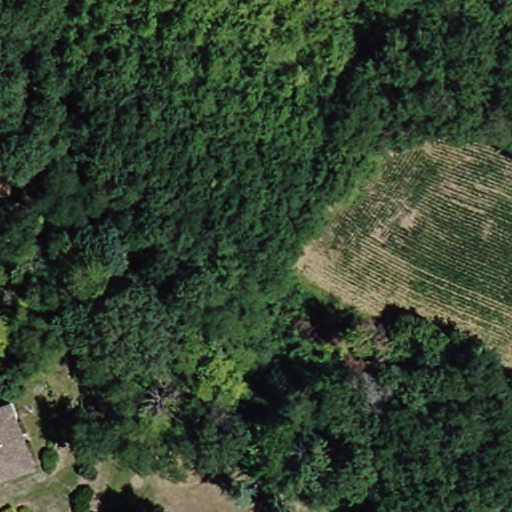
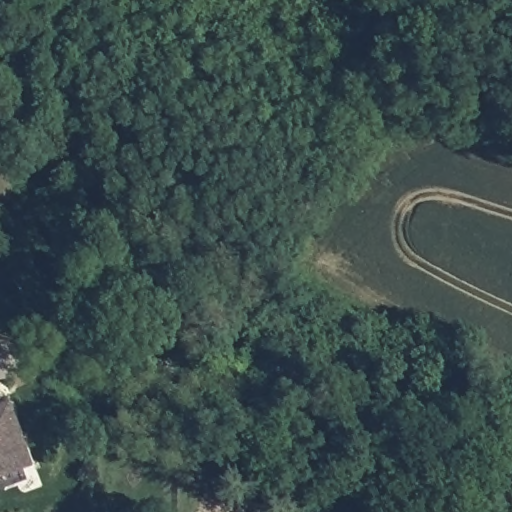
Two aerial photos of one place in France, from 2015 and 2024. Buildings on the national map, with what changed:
unchanged [(0,410),(0,404),(5,402),(7,407),(0,410)]
unchanged [(27,470),(0,480),(0,410),(7,407),(27,470)]

